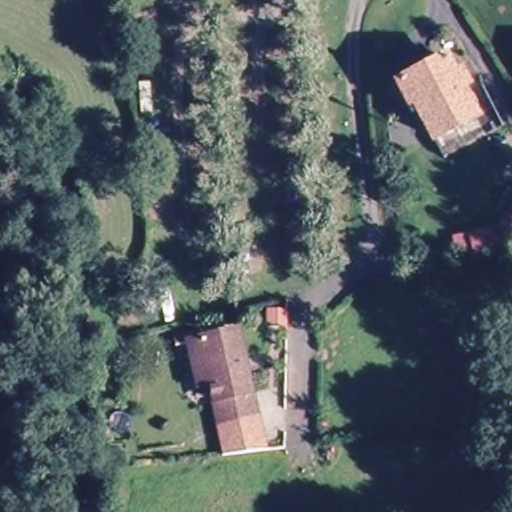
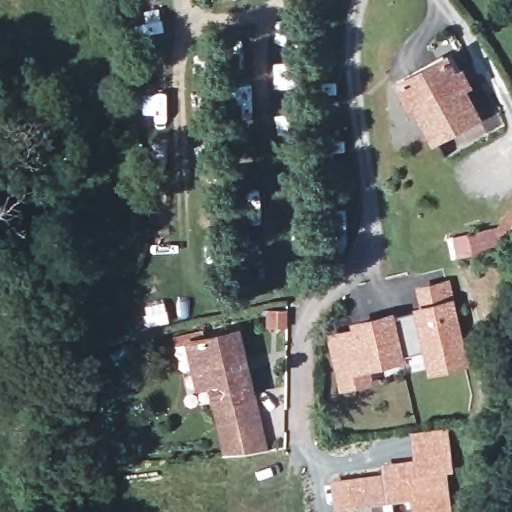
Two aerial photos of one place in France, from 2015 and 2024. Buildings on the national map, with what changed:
unchanged [(460,71),(466,82),(460,85),(475,115),(433,137),(414,100),(408,103),(398,82),(445,57),(454,75),(460,71)]
unchanged [(501,226),(512,210),(512,232),(501,226)]
new [(351,328),(350,322),(394,312),(395,317),(413,312),(413,308),(419,307),(415,288),(449,280),(453,299),(470,366),(429,376),(423,352),(403,357),(404,362),(369,371),(372,387),(340,392),(327,332),(351,328)]
unchanged [(206,370),(194,372),(190,355),(184,329),(230,319),(250,401),(215,408),(206,370)]
unchanged [(259,438),(227,442),(223,442),(215,408),(250,401),(259,438)]
new [(360,507),(335,512),(331,480),(382,472),(381,463),(413,457),(410,432),(448,427),(454,473),(448,474),(453,512),(361,512),(360,507)]

